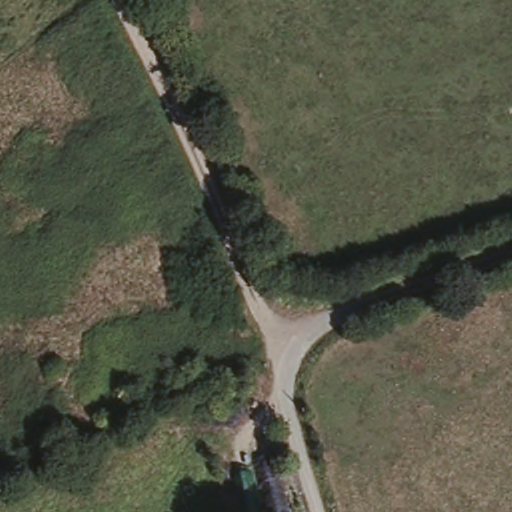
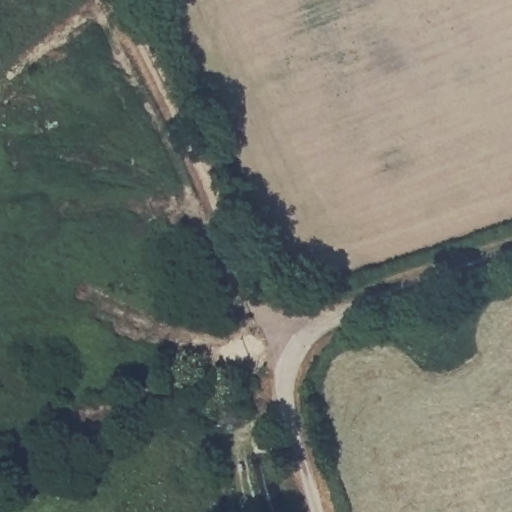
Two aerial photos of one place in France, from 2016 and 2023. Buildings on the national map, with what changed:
[]

